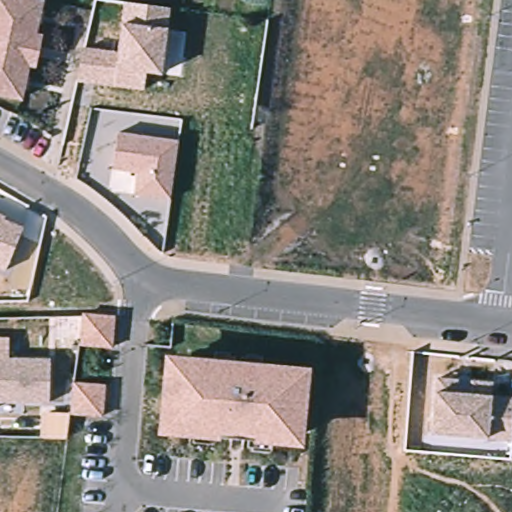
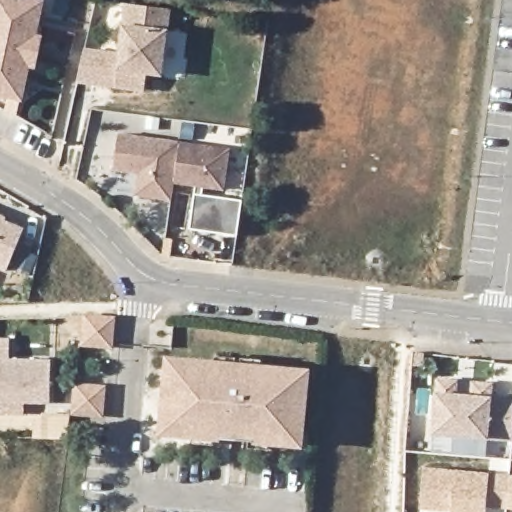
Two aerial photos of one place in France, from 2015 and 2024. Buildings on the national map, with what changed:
unchanged [(31,63),(24,94),(0,89),(0,0),(32,0),(44,2),(37,34),(43,35),(40,50),(37,64),(31,63)]
unchanged [(117,86),(78,82),(87,49),(119,54),(123,25),(127,5),(170,9),(168,30),(161,75),(147,75),(143,90),(117,86)]
unchanged [(138,175),(115,170),(120,132),(179,140),(168,200),(136,195),(138,175)]
new [(230,148),(223,191),(172,182),(179,140),(230,148)]
new [(195,186),(203,187),(203,194),(243,199),(237,234),(191,229),(194,195),(195,186)]
unchanged [(8,216),(5,220),(23,228),(6,271),(0,269),(0,213),(8,216)]
unchanged [(115,318),(116,318),(113,348),(83,344),(86,315),(115,318)]
unchanged [(8,355),(8,361),(49,362),(49,404),(0,404),(0,355),(8,355)]
unchanged [(197,371),(198,362),(283,370),(282,378),(309,381),(305,435),(277,433),(276,442),(191,435),(192,426),(165,423),(169,368),(197,371)]
unchanged [(107,388),(103,417),(73,413),(77,384),(107,388)]
unchanged [(512,392),(512,431),(433,426),(437,385),(512,392)]
new [(486,512),(451,512),(451,510),(422,508),(424,466),(490,473),(512,475),(512,509),(487,508),(486,512)]

